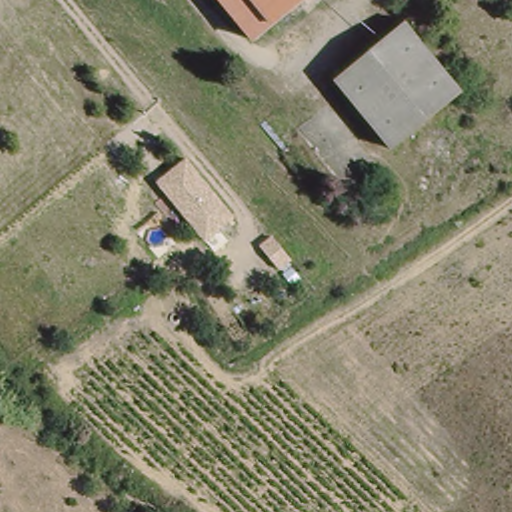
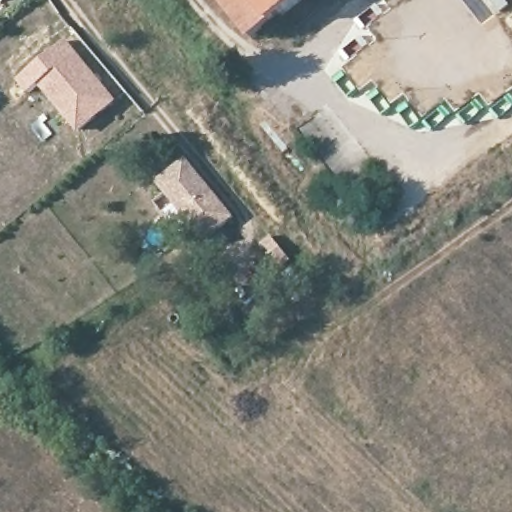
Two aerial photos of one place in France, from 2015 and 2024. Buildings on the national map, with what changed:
unchanged [(213,0),(301,0),(249,44),(213,0)]
demolished [(402,28),(455,95),(386,150),(334,81),(402,28)]
new [(66,39),(117,100),(78,131),(38,85),(29,93),(18,79),(66,39)]
unchanged [(156,181),(187,158),(235,218),(206,240),(156,181)]
new [(268,229),(289,255),(278,264),(256,239),(268,229)]

